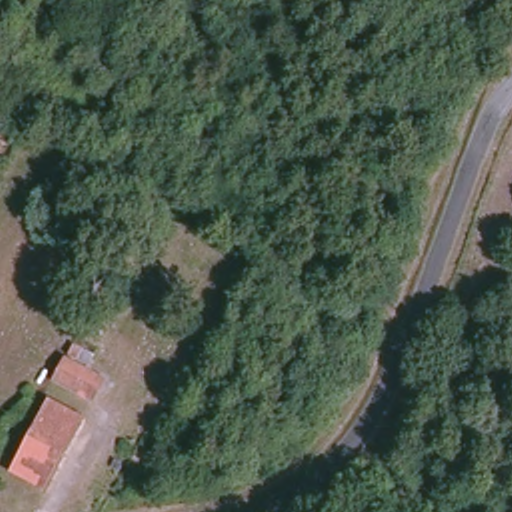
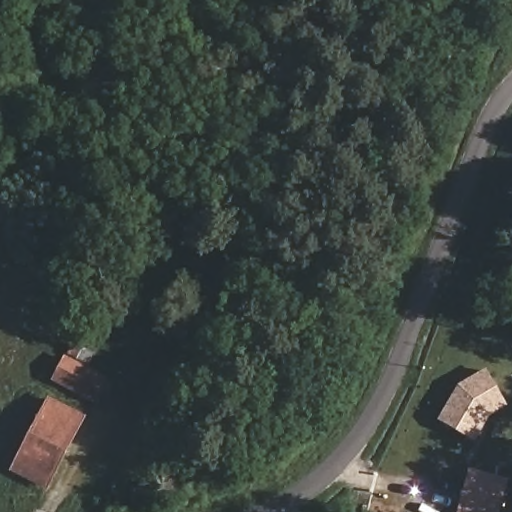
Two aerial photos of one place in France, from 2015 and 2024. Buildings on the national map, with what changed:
unchanged [(94,404),(54,383),(65,360),(105,380),(94,404)]
new [(491,417),(476,442),(438,420),(459,385),(486,369),(509,407),(491,417)]
unchanged [(50,395),(85,412),(46,492),(11,475),(50,395)]
new [(510,479),(501,512),(458,512),(470,469),(510,479)]

